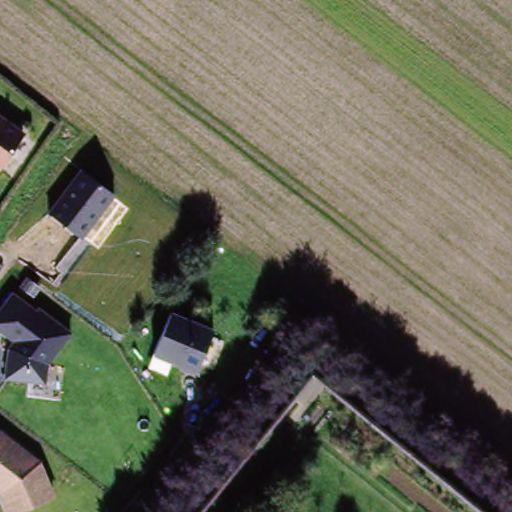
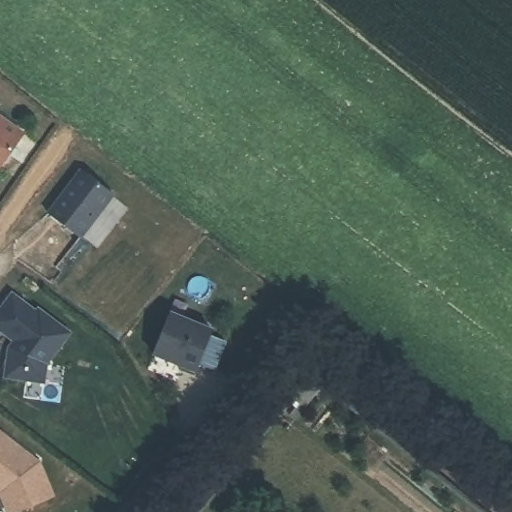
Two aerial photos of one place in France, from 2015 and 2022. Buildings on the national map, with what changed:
unchanged [(25,136),(0,171),(0,117),(25,136)]
unchanged [(80,158),(125,193),(86,248),(43,214),(80,158)]
unchanged [(46,365),(46,384),(5,380),(6,356),(13,344),(0,334),(0,305),(10,291),(70,333),(46,365)]
unchanged [(212,329),(193,372),(152,358),(170,315),(212,329)]
unchanged [(42,462),(53,497),(16,512),(5,512),(0,499),(0,433),(42,462)]

